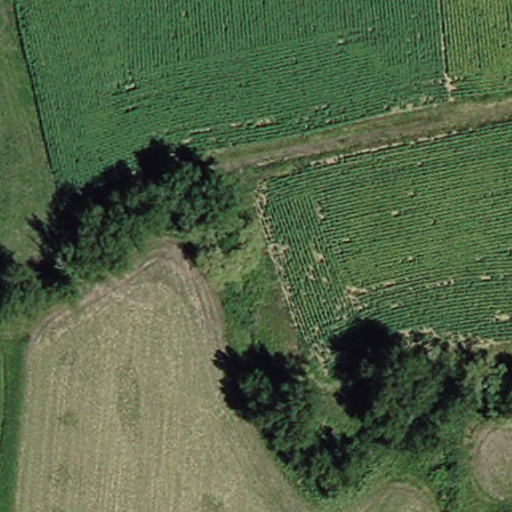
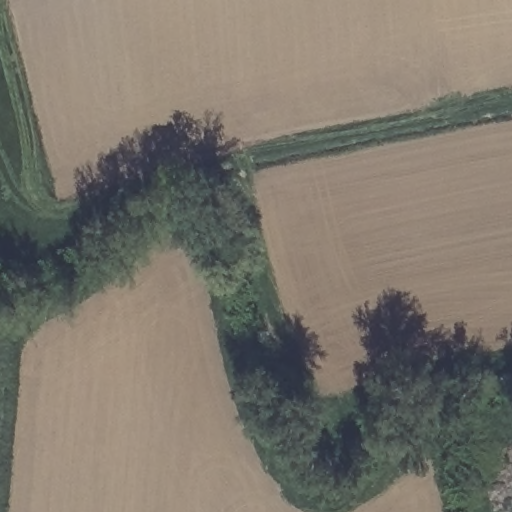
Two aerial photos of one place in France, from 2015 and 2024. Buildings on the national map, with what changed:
[]

